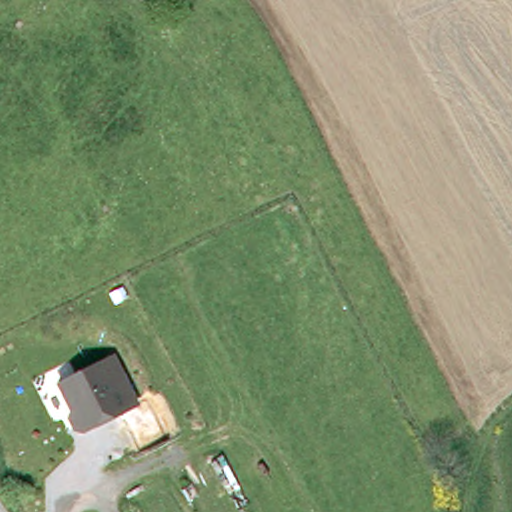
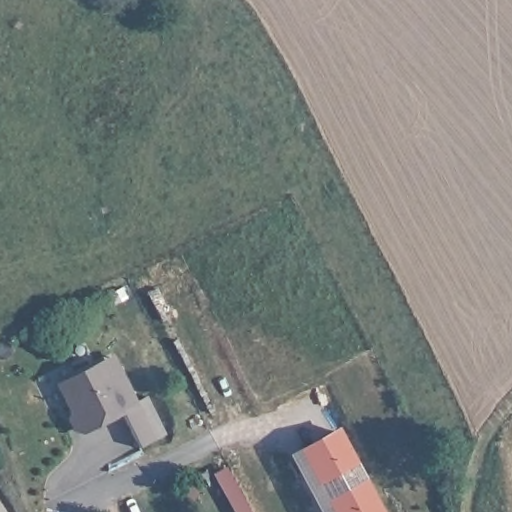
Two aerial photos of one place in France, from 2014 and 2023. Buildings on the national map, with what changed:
unchanged [(66,417),(70,412),(56,383),(115,355),(138,405),(79,433),(72,432),(66,417)]
new [(138,405),(149,400),(166,434),(140,449),(122,413),(138,405)]
new [(385,512),(317,512),(286,454),(339,426),(385,512)]
new [(226,467),(250,512),(233,512),(212,473),(226,467)]

